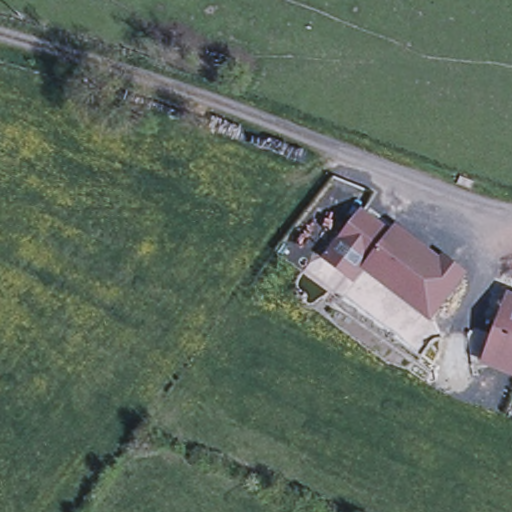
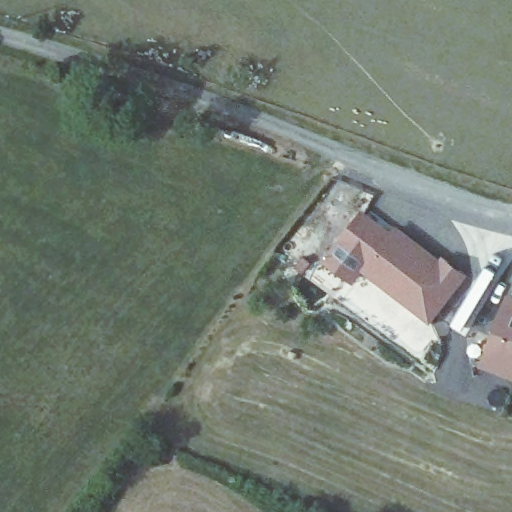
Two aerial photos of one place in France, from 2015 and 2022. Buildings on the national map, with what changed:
unchanged [(382,239),(388,232),(432,266),(434,263),(454,278),(421,322),(356,272),(346,286),(317,263),(333,243),(354,217),(382,239)]
unchanged [(512,380),(479,367),(504,301),(512,305),(512,380)]

